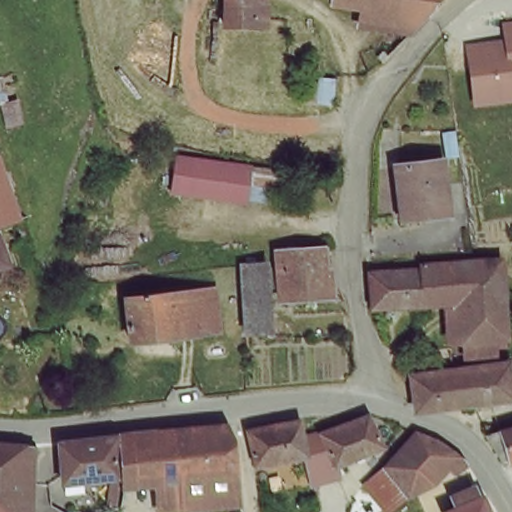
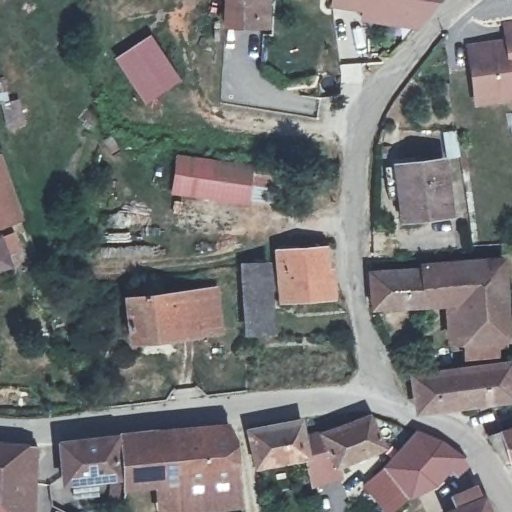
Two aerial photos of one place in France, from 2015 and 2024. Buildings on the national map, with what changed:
unchanged [(261,22),(220,20),(220,0),(261,0),(261,6),(261,22)]
unchanged [(413,31),(354,27),(354,7),(328,7),(328,0),(431,0),(413,31)]
unchanged [(473,108),(464,45),(498,42),(497,22),(512,20),(512,104),(473,108)]
new [(150,34),(182,81),(145,105),(113,58),(150,34)]
unchanged [(341,106),(304,107),(305,78),(338,79),(341,106)]
new [(10,101),(18,99),(25,124),(7,128),(0,101),(0,80),(4,79),(10,101)]
unchanged [(273,203),(247,199),(176,188),(180,157),(252,167),(278,171),(273,203)]
unchanged [(449,211),(404,217),(397,165),(440,159),(449,211)]
unchanged [(0,160),(20,216),(0,222),(0,160)]
unchanged [(0,267),(0,239),(10,264),(0,267)]
unchanged [(332,247),(335,294),(282,296),(280,249),(332,247)]
unchanged [(425,300),(425,304),(373,307),(371,271),(421,269),(421,264),(501,260),(506,338),(494,339),(496,354),(467,357),(464,341),(460,341),(459,299),(425,300)]
unchanged [(269,329),(247,327),(243,267),(243,263),(270,264),(269,329)]
unchanged [(126,296),(195,289),(216,287),(221,330),(199,332),(131,338),(126,296)]
unchanged [(411,373),(434,370),(435,375),(490,365),(508,362),(509,362),(512,386),(512,398),(469,403),(434,407),(416,405),(412,375),(411,373)]
unchanged [(313,484),(311,476),(307,463),(308,458),(307,456),(306,447),(305,438),(316,435),(368,416),(383,447),(337,467),(339,477),(313,484)]
unchanged [(126,430),(226,420),(229,427),(233,436),(237,478),(118,483),(126,430)]
unchanged [(306,447),(307,456),(255,466),(249,429),(302,420),(305,438),(306,447)]
unchanged [(504,461),(488,435),(512,428),(512,458),(504,461)]
unchanged [(63,475),(61,438),(116,431),(118,469),(63,475)]
unchanged [(388,462),(418,431),(423,433),(437,440),(459,456),(434,479),(411,493),(390,465),(388,462)]
unchanged [(35,485),(22,482),(20,512),(0,512),(0,442),(36,446),(35,485)]
unchanged [(387,512),(385,512),(368,483),(390,465),(411,493),(387,512)]
unchanged [(239,506),(187,512),(119,512),(120,508),(115,507),(116,494),(118,483),(237,478),(239,506)]
unchanged [(453,498),(449,489),(469,480),(473,489),(478,487),(488,511),(489,512),(447,512),(443,502),(453,498)]

